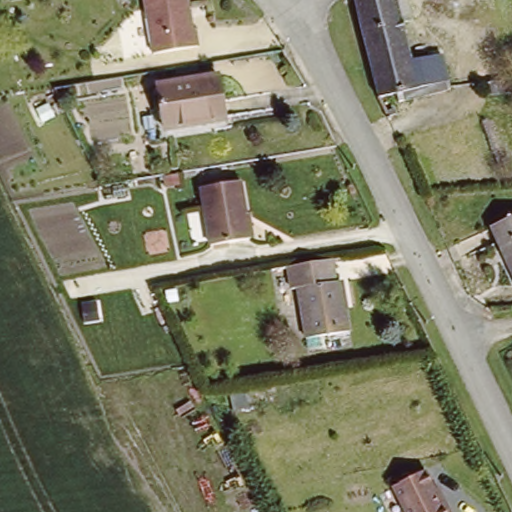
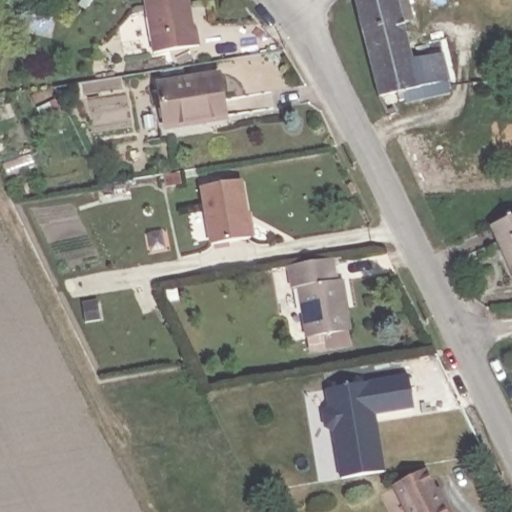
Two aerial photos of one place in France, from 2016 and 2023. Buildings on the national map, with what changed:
unchanged [(187,0),(191,26),(194,26),(196,41),(151,49),(143,0),(187,0)]
unchanged [(401,0),(418,66),(446,60),(453,86),(384,106),(356,2),(365,0),(401,0)]
unchanged [(235,116),(174,126),(167,83),(228,73),(235,116)]
unchanged [(249,238),(208,245),(198,188),(239,180),(249,238)]
unchanged [(508,263),(489,221),(512,211),(512,263),(512,262),(508,263)]
unchanged [(299,291),(289,291),(289,259),(339,256),(339,279),(354,284),(358,334),(304,340),(299,291)]
new [(407,376),(414,409),(374,416),(384,473),(339,480),(333,435),(321,428),(318,414),(322,414),(318,393),(407,376)]
unchanged [(427,468),(449,512),(408,512),(394,485),(427,468)]

